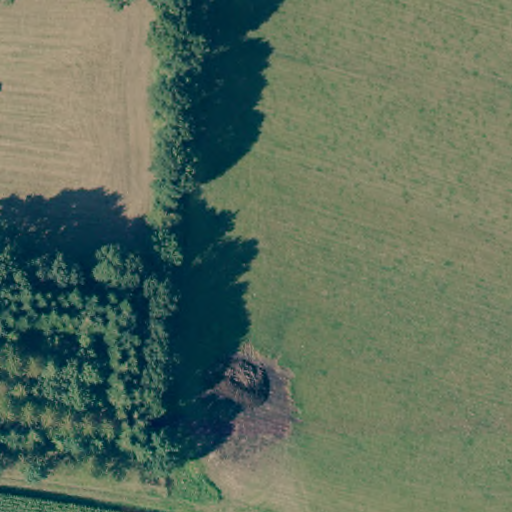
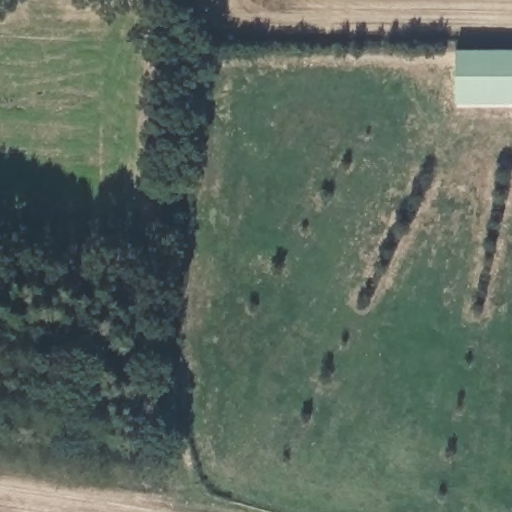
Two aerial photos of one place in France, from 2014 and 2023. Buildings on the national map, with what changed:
new [(457,53),(512,53),(512,106),(457,106),(457,53)]

